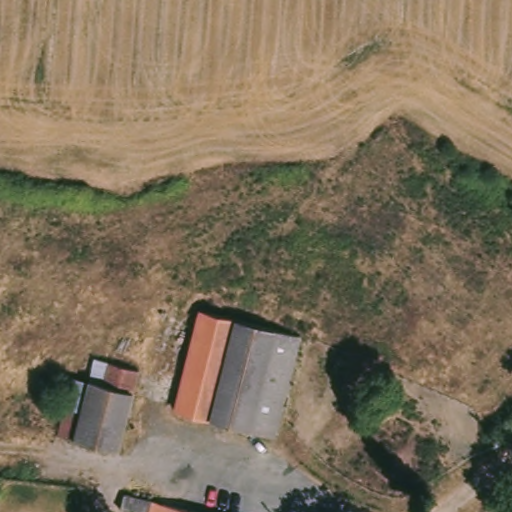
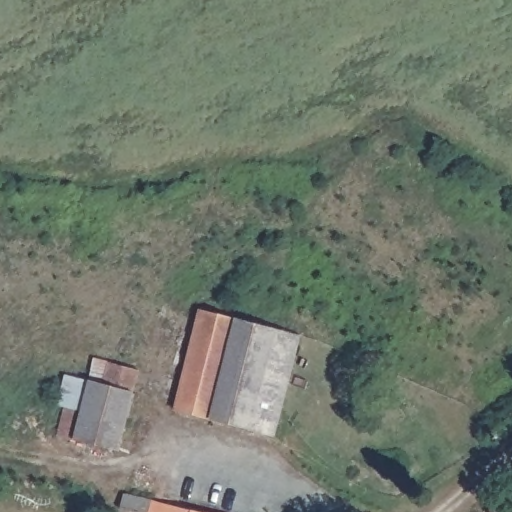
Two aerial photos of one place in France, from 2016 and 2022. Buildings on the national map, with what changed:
unchanged [(217,319),(295,341),(269,435),(169,411),(195,313),(217,319)]
unchanged [(81,412),(87,383),(104,386),(109,365),(139,372),(118,451),(55,437),(62,408),(81,412)]
unchanged [(115,509),(115,512),(105,512),(91,509),(95,494),(96,489),(195,512),(126,512),(115,509)]

